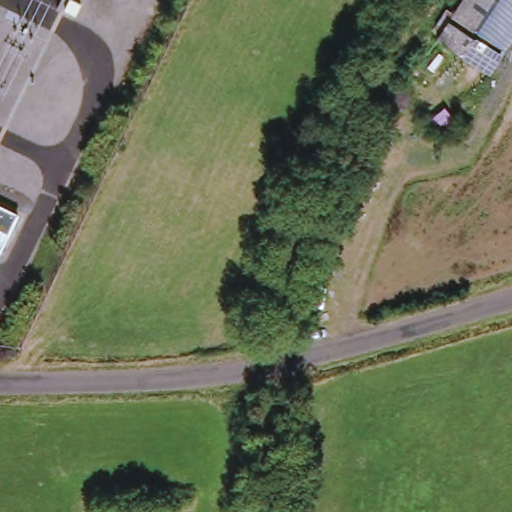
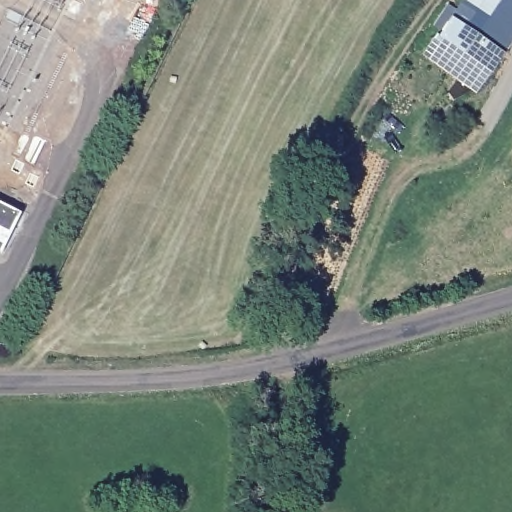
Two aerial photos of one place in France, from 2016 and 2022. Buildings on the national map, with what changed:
unchanged [(63,10),(41,0),(67,0),(63,10)]
unchanged [(441,42),(468,0),(512,0),(512,41),(491,74),(441,42)]
unchanged [(23,217),(3,254),(0,252),(0,205),(23,217)]

